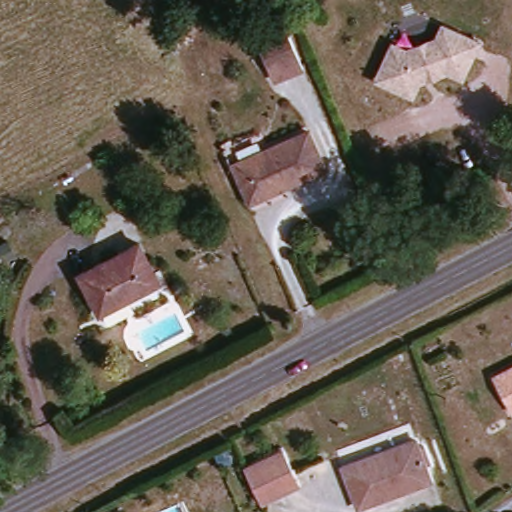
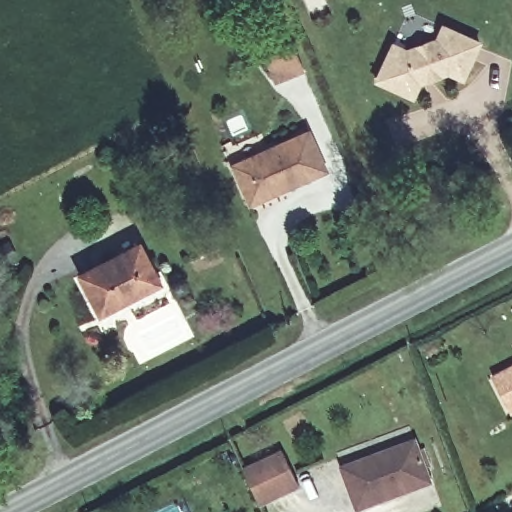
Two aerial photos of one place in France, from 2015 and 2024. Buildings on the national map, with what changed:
unchanged [(258,53),(253,38),(264,33),(260,23),(275,15),(280,26),(285,41),(299,73),(271,84),(258,53)]
unchanged [(409,55),(409,50),(428,45),(433,46),(441,30),(477,46),(459,82),(446,75),(417,86),(409,100),(374,83),(391,46),(409,55)]
unchanged [(326,173),(247,210),(230,171),(308,135),(326,173)]
unchanged [(156,282),(99,310),(83,278),(140,249),(156,282)]
unchanged [(496,394),(489,380),(512,369),(512,386),(496,394)]
unchanged [(496,394),(512,386),(512,414),(508,416),(496,394)]
unchanged [(349,472),(420,443),(437,483),(422,489),(369,512),(365,512),(364,509),(349,472)]
unchanged [(251,474),(289,455),(305,487),(268,506),(251,474)]

